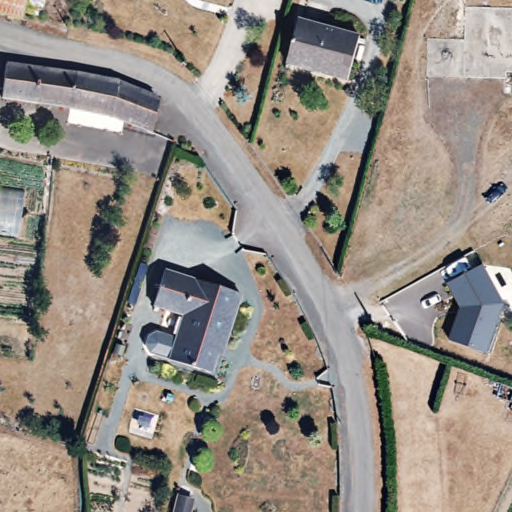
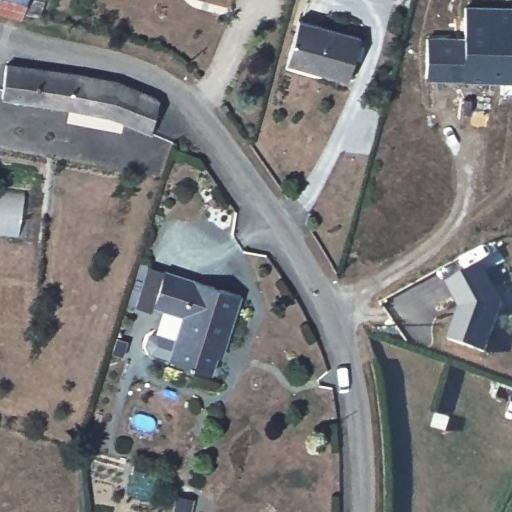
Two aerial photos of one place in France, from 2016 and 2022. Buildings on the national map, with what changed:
unchanged [(39,18),(21,14),(19,20),(0,14),(0,0),(44,0),(39,18)]
new [(512,5),(512,82),(465,81),(465,77),(426,77),(426,34),(464,35),(464,3),(512,5)]
unchanged [(355,35),(347,79),(287,69),(294,25),(355,35)]
unchanged [(42,67),(35,102),(3,95),(10,61),(42,67)]
unchanged [(76,75),(71,110),(36,103),(35,102),(42,67),(76,75)]
unchanged [(93,79),(104,81),(114,85),(106,119),(71,110),(76,75),(93,79)]
unchanged [(152,101),(144,136),(106,119),(114,85),(152,101)]
unchanged [(453,270),(488,252),(508,292),(490,341),(453,327),(465,295),(453,270)]
unchanged [(153,346),(155,338),(163,333),(181,338),(187,313),(158,305),(168,270),(244,292),(231,346),(224,345),(217,371),(176,359),(157,354),(153,346)]

